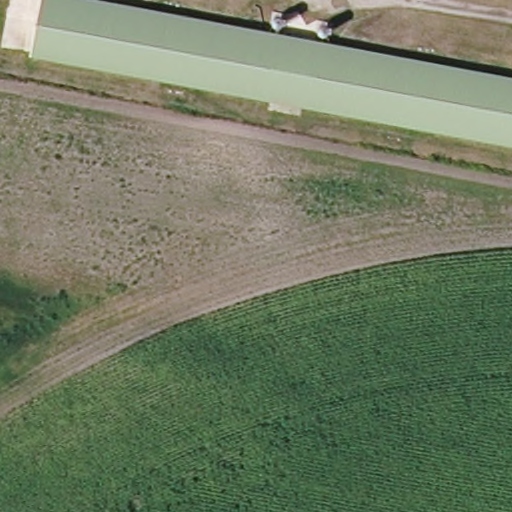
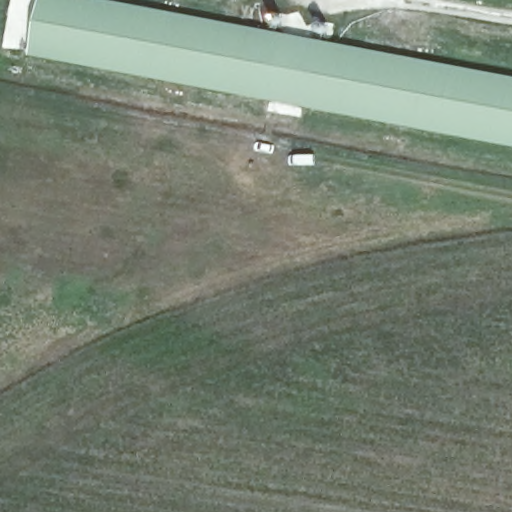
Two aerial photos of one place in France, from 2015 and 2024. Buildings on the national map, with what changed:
unchanged [(512,146),(34,55),(44,0),(77,0),(512,83),(512,146)]

